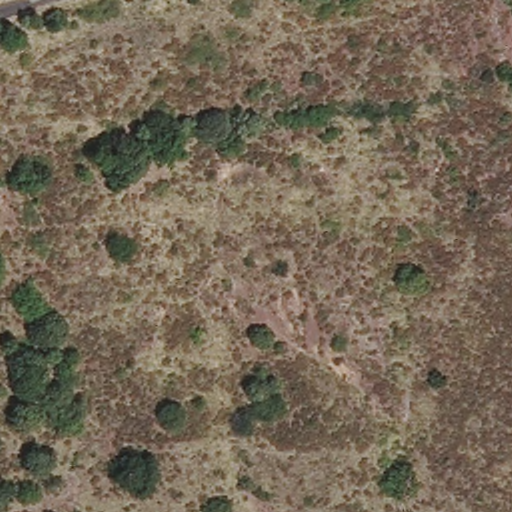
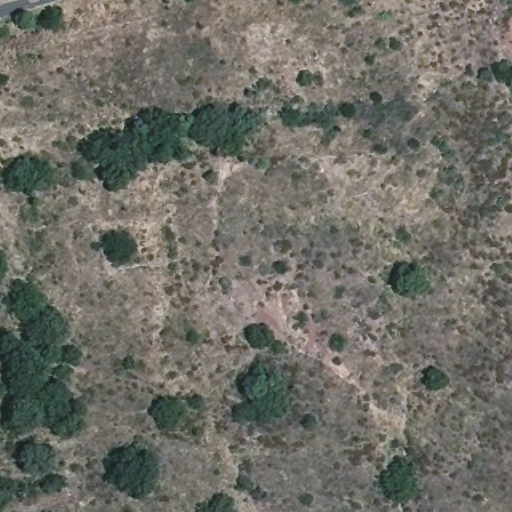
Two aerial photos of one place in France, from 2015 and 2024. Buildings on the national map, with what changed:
[]

